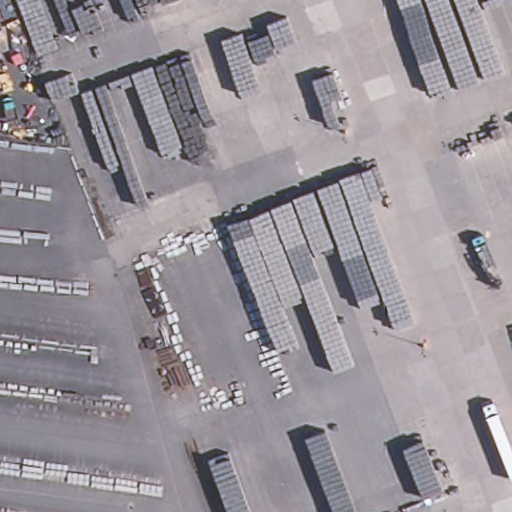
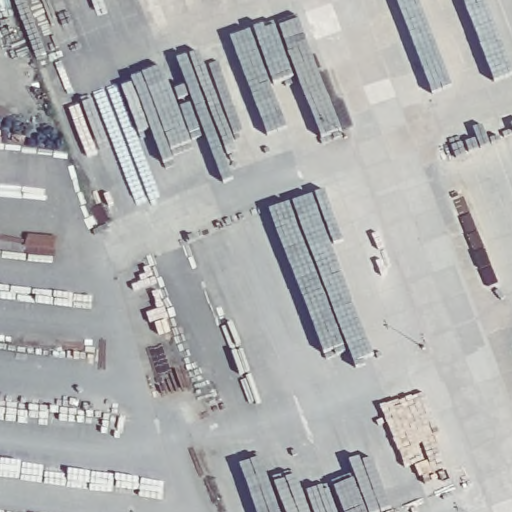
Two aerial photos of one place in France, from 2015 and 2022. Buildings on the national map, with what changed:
[]

